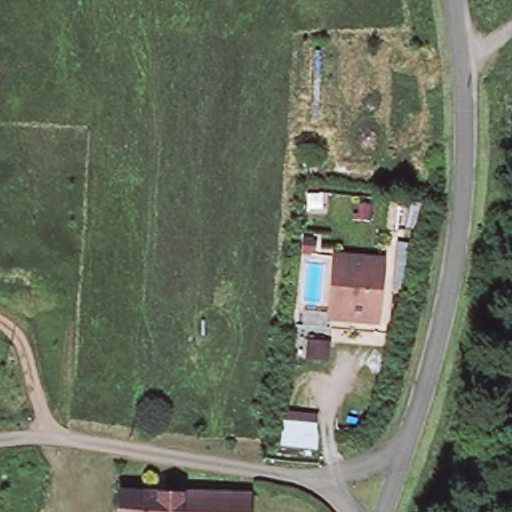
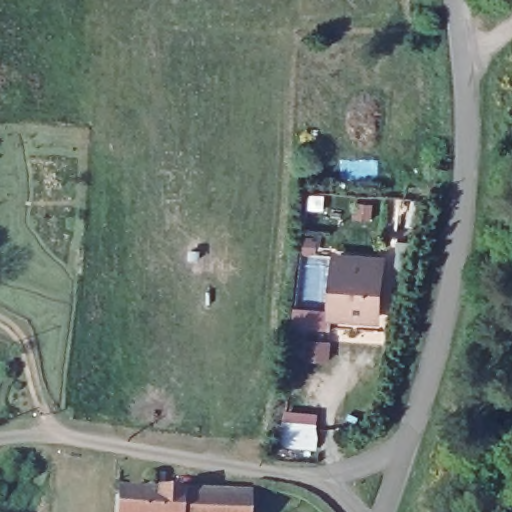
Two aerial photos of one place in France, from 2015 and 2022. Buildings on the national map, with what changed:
unchanged [(377,262),(373,321),(359,321),(359,324),(341,323),(341,320),(326,318),(330,260),(377,262)]
unchanged [(333,346),(330,362),(309,358),(312,343),(333,346)]
unchanged [(320,414),(317,450),(279,450),(282,410),(320,414)]
unchanged [(119,512),(120,491),(220,501),(238,503),(238,512),(119,512)]

